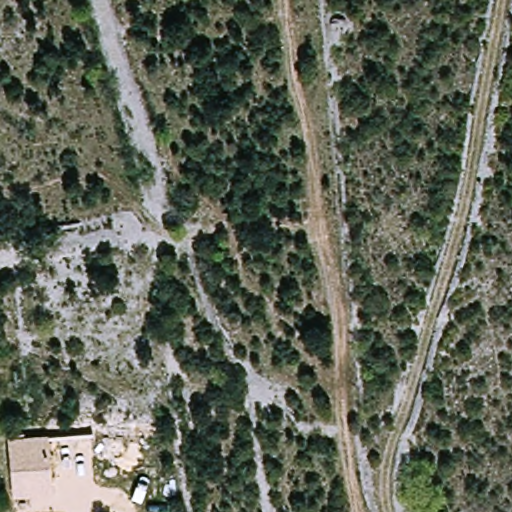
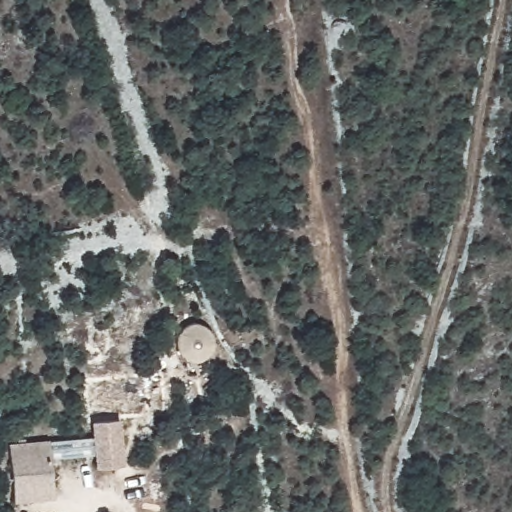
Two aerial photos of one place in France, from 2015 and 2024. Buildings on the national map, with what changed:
new [(120,418),(124,465),(95,468),(90,422),(120,418)]
unchanged [(12,502),(11,487),(8,445),(50,442),(53,483),(53,498),(12,502)]

